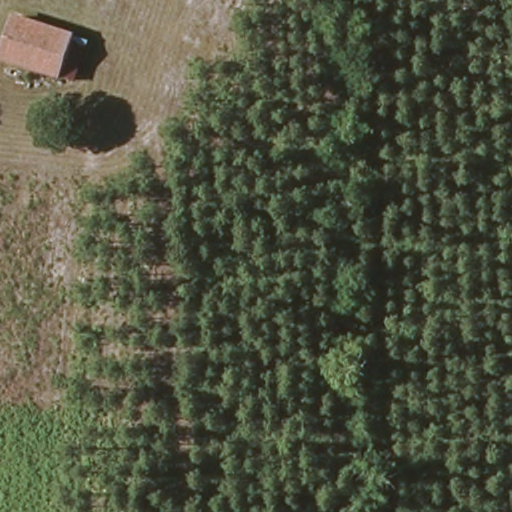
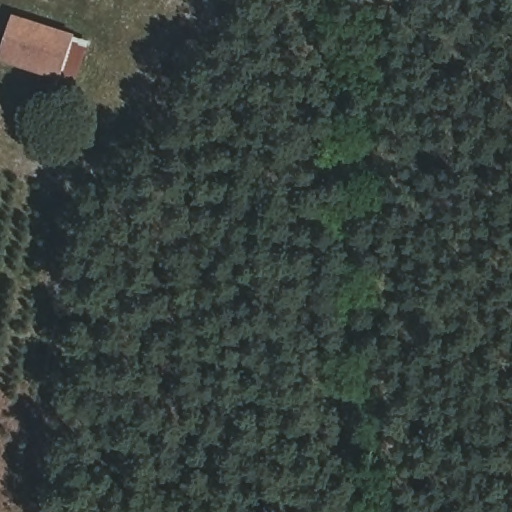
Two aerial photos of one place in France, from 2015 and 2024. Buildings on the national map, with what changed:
unchanged [(76,82),(1,60),(14,16),(93,40),(76,82)]

